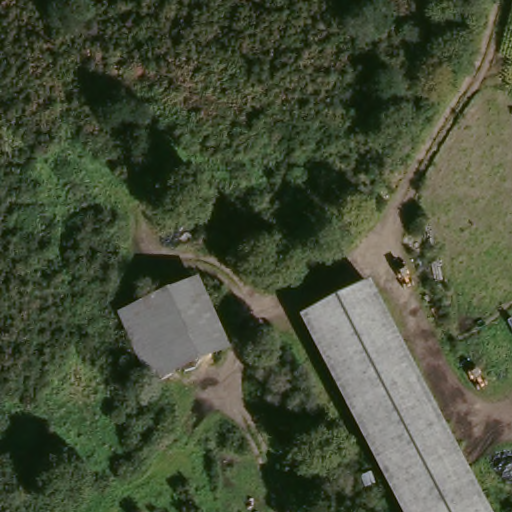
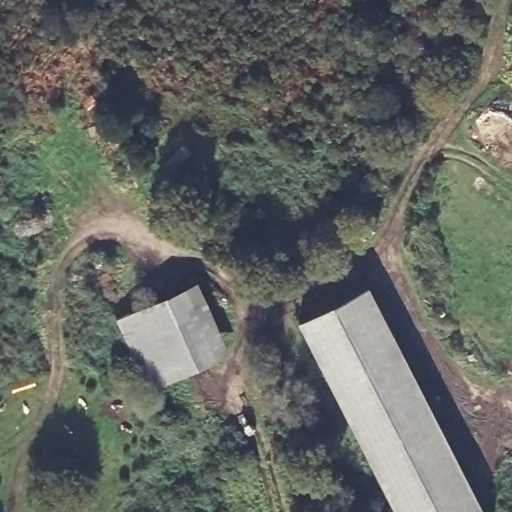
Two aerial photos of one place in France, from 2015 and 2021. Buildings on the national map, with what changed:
unchanged [(148,385),(111,311),(193,276),(224,350),(148,385)]
unchanged [(365,284),(485,512),(397,512),(296,320),(365,284)]

